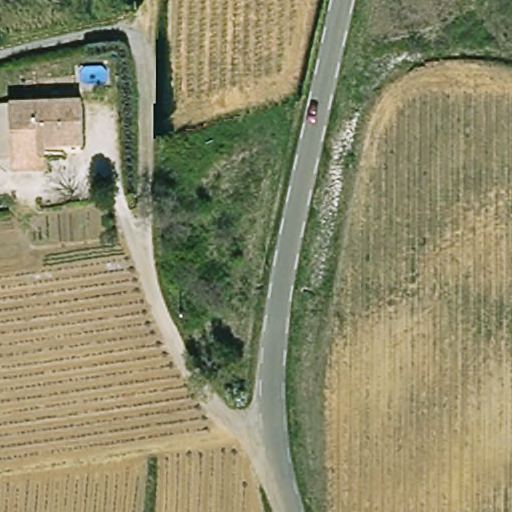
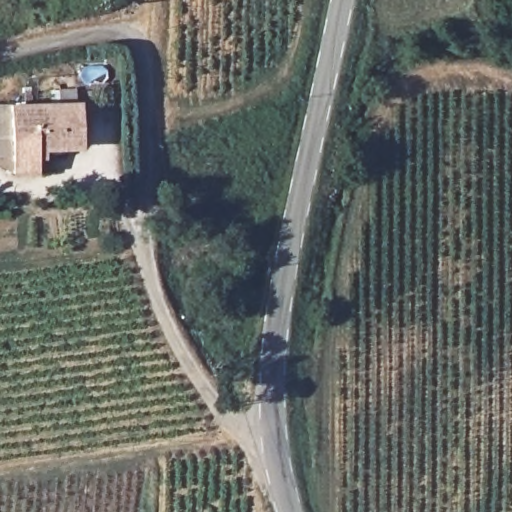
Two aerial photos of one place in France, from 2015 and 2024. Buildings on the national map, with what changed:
unchanged [(8,174),(8,156),(7,107),(80,105),(81,145),(43,147),(43,156),(43,172),(8,174)]

